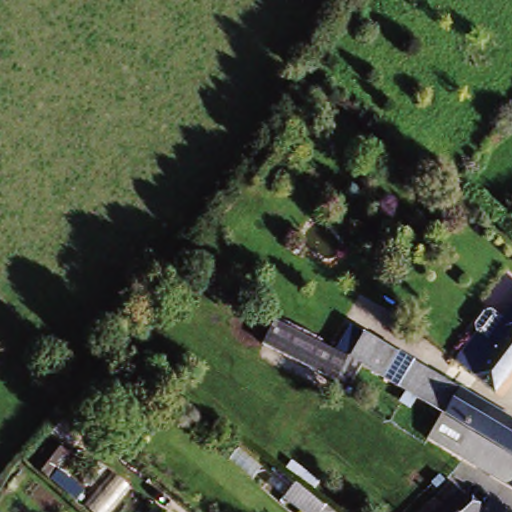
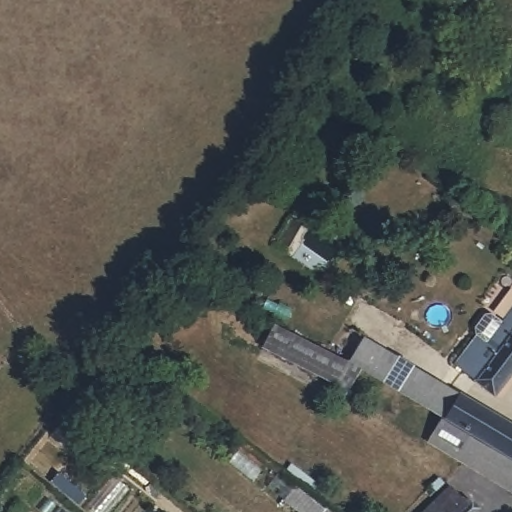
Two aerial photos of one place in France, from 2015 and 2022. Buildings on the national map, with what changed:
unchanged [(495,393),(451,362),(486,312),(495,317),(512,295),(512,368),(495,393)]
unchanged [(322,376),(262,341),(272,322),(333,354),(358,367),(341,395),(329,387),(333,381),(322,376)]
unchanged [(413,367),(401,391),(367,372),(380,349),(413,367)]
unchanged [(413,367),(512,419),(512,449),(443,412),(425,403),(401,391),(413,367)]
unchanged [(430,439),(441,416),(512,455),(512,483),(430,439)]
unchanged [(51,481),(36,468),(56,444),(71,457),(51,481)]
unchanged [(85,495),(78,503),(55,483),(62,475),(85,495)]
unchanged [(325,506),(320,512),(296,512),(289,505),(292,502),(280,490),(294,476),(325,506)]
unchanged [(478,511),(477,512),(419,512),(448,482),(478,511)]

